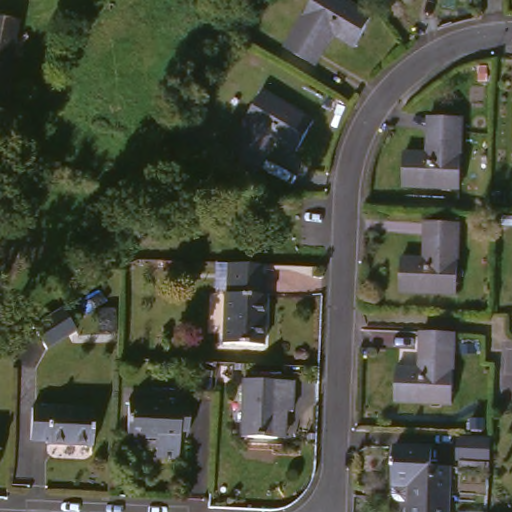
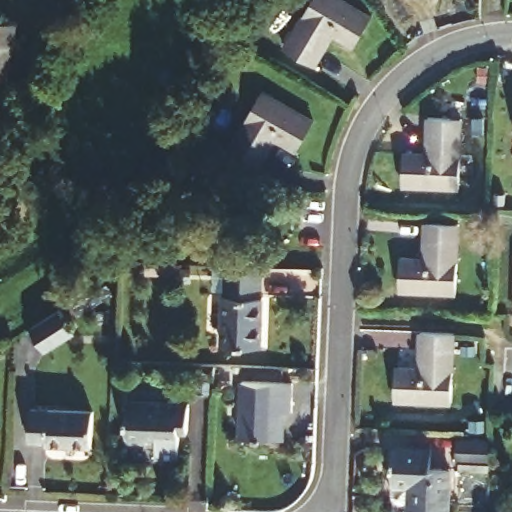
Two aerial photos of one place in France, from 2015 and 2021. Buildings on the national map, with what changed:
unchanged [(344,41),(337,55),(328,49),(316,69),(287,51),(313,5),(316,0),(335,0),(371,20),(355,47),(344,41)]
unchanged [(19,16),(4,113),(0,112),(0,13),(19,16)]
unchanged [(299,147),(288,140),(279,155),(271,150),(261,167),(233,150),(260,102),(267,90),(280,96),(317,117),(299,147)]
unchanged [(446,189),(408,187),(409,155),(425,155),(426,141),(434,142),(436,120),(464,122),(462,171),(461,189),(446,189)]
unchanged [(444,295),(406,294),(406,261),(424,262),(424,247),(431,247),(431,229),(461,230),(460,280),(459,295),(444,295)]
unchanged [(259,266),(258,295),(266,296),(264,347),(221,345),(224,293),(227,294),(228,265),(259,266)]
unchanged [(63,310),(77,333),(47,351),(32,328),(63,310)]
unchanged [(438,405),(395,404),(397,372),(415,373),(416,359),(424,359),(424,340),(453,341),(450,395),(450,406),(438,405)]
unchanged [(274,435),(239,434),(240,377),(294,380),(293,410),(285,410),(284,436),(274,435)]
unchanged [(194,405),(192,428),(184,428),(183,456),(160,455),(162,436),(146,435),(146,445),(127,445),(129,401),(194,405)]
unchanged [(99,412),(98,447),(52,445),(52,440),(32,440),(34,411),(99,412)]
unchanged [(464,437),(494,438),(493,476),(463,474),(464,437)]
unchanged [(432,448),(432,465),(449,465),(448,512),(403,512),(404,500),(413,501),(414,485),(396,484),(397,446),(432,448)]

